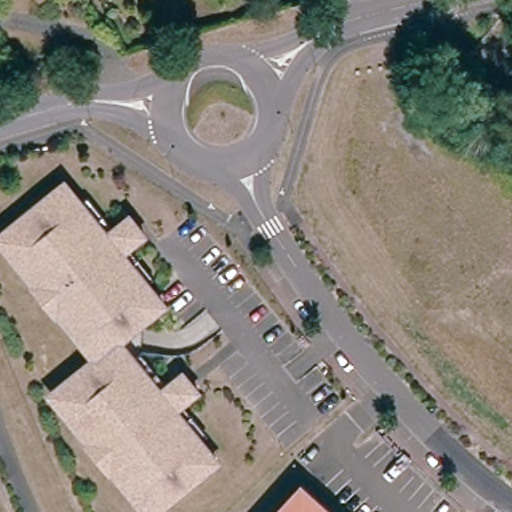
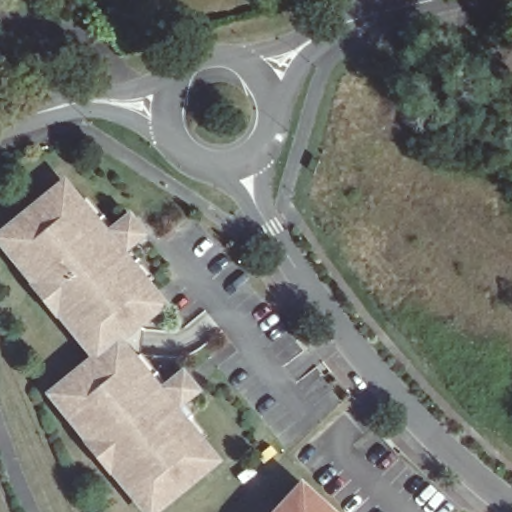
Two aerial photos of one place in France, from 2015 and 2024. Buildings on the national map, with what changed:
unchanged [(91,358),(101,351),(3,231),(59,185),(103,237),(124,220),(137,235),(115,253),(158,305),(113,341),(156,394),(179,376),(191,391),(169,409),(212,461),(155,507),(57,387),(91,358)]
unchanged [(91,358),(0,247),(0,233),(3,231),(101,351),(91,358)]
unchanged [(155,507),(149,512),(144,512),(47,395),(57,387),(155,507)]
unchanged [(302,486),(330,512),(278,512),(302,486)]

